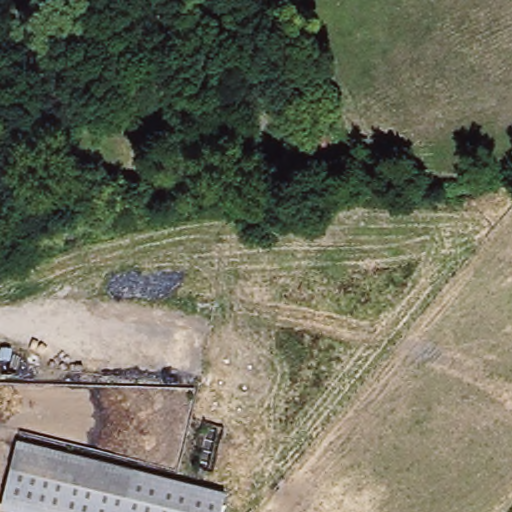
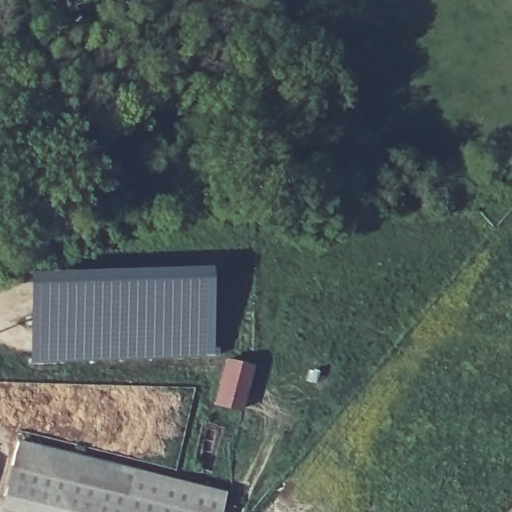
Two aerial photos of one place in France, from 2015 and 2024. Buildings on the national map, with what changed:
new [(26,272),(208,265),(213,356),(29,362),(26,272)]
new [(235,412),(211,406),(222,362),(246,369),(235,412)]
unchanged [(16,441),(223,495),(219,512),(4,512),(0,511),(16,441)]

